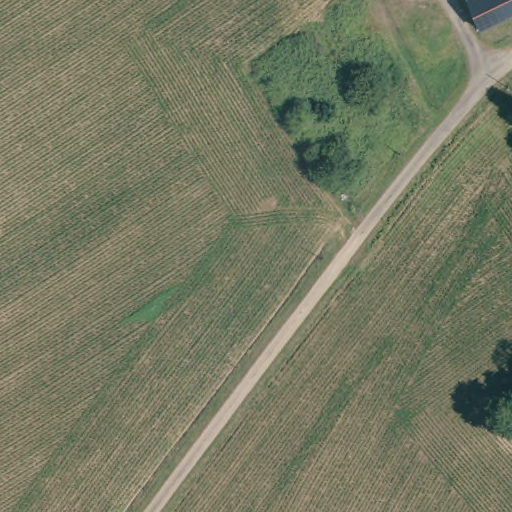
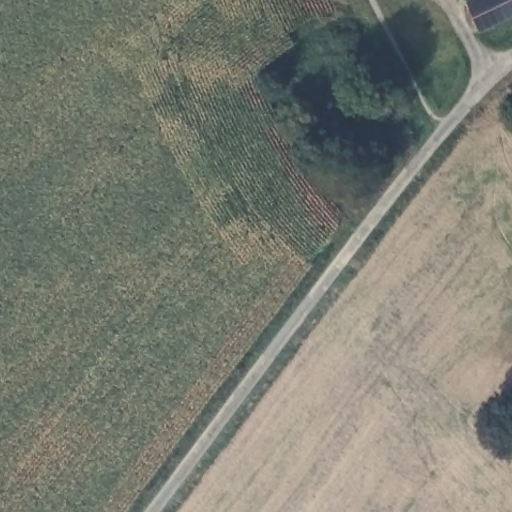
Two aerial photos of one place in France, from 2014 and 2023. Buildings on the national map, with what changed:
unchanged [(463,0),(512,0),(512,14),(477,33),(463,0)]

